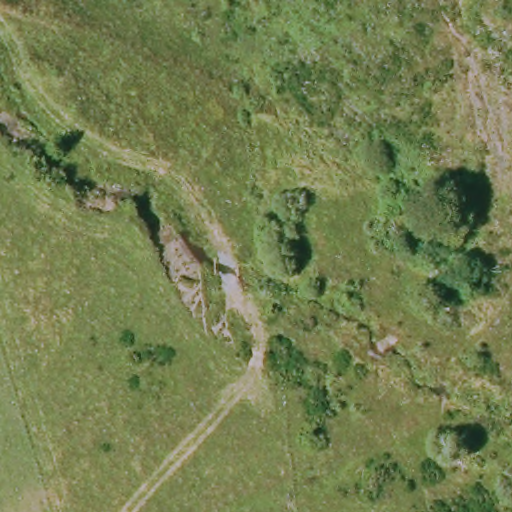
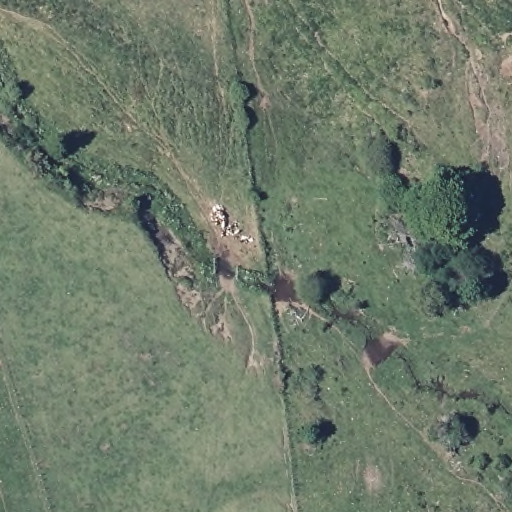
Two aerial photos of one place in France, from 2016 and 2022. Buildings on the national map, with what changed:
[]

